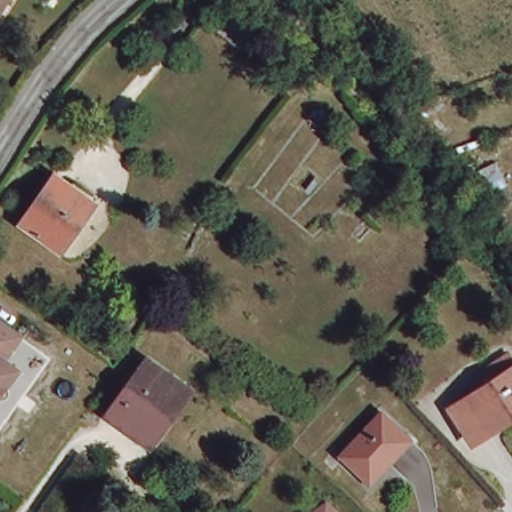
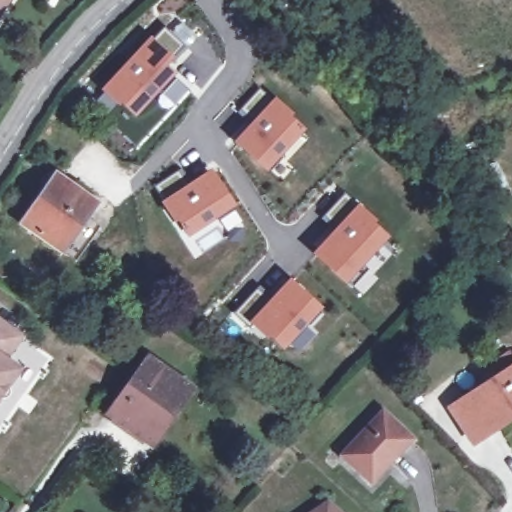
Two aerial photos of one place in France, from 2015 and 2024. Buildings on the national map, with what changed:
unchanged [(0,9),(0,0),(6,0),(0,9)]
demolished [(250,34),(239,48),(218,31),(230,17),(250,34)]
new [(150,36),(155,41),(165,30),(185,49),(175,60),(168,67),(176,74),(135,119),(101,90),(150,36)]
new [(272,101),(275,98),(294,115),(291,118),(305,130),(268,171),(235,141),(251,121),(240,112),(259,90),(272,101)]
new [(180,170),(188,185),(210,170),(235,207),(187,237),(179,222),(174,225),(160,204),(162,201),(156,188),(180,170)]
unchanged [(87,204),(53,252),(12,223),(46,174),(87,204)]
new [(336,228),(323,217),(345,195),(355,205),(357,202),(377,220),(373,223),(390,238),(363,266),(368,270),(352,288),(346,283),(313,253),(336,228)]
new [(257,290),(270,301),(290,279),(321,308),(282,351),(253,326),(250,329),(234,313),(257,290)]
unchanged [(17,337),(1,360),(15,370),(0,392),(0,324),(17,337)]
unchanged [(451,409),(482,389),(473,375),(510,351),(512,354),(512,418),(474,444),(451,409)]
unchanged [(162,418),(144,442),(105,415),(145,361),(187,391),(166,420),(162,418)]
unchanged [(344,463),(346,461),(335,450),(373,409),(401,436),(378,460),(376,458),(358,477),(344,463)]
unchanged [(352,512),(308,512),(332,496),(352,512)]

